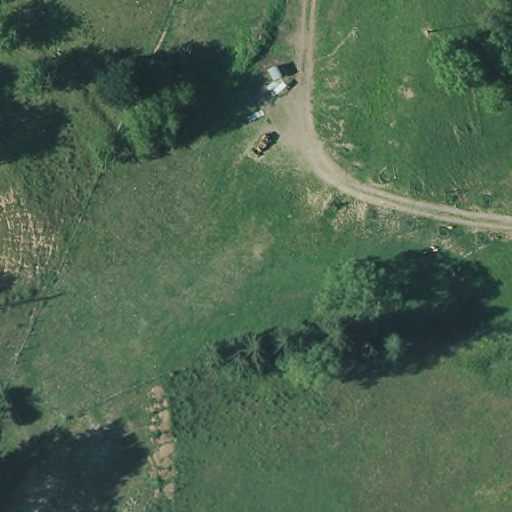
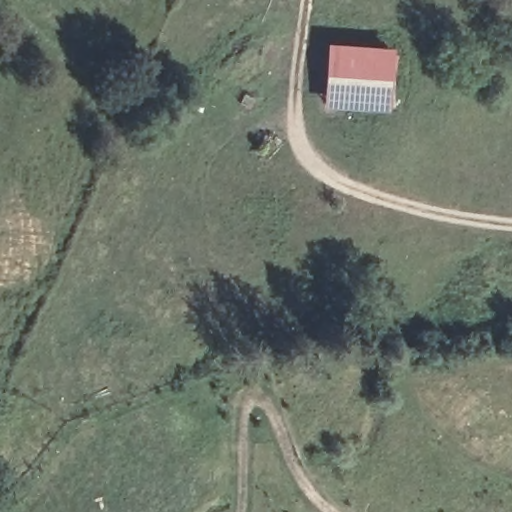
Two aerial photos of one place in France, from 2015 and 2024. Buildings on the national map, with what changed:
new [(397,48),(392,115),(322,111),(328,45),(397,48)]

